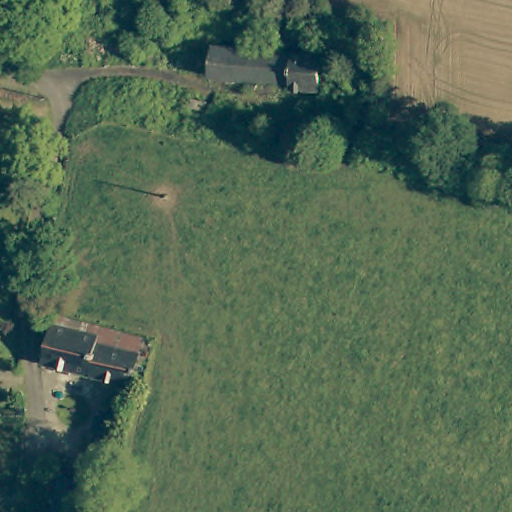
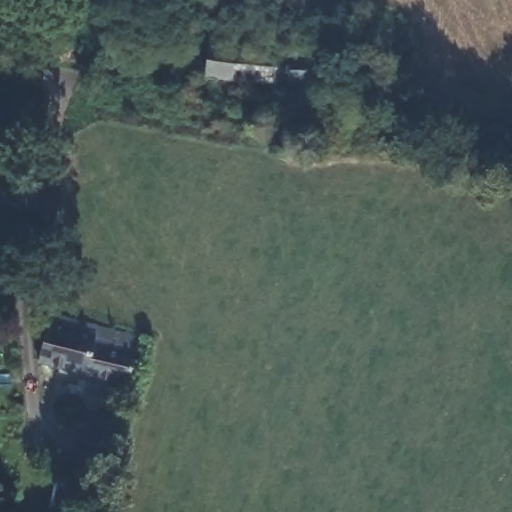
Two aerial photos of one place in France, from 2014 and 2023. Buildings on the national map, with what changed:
unchanged [(315,56),(310,95),(287,92),(288,87),(203,77),(209,47),(246,50),(315,56)]
unchanged [(95,339),(93,345),(133,356),(122,388),(36,363),(46,325),(95,339)]

